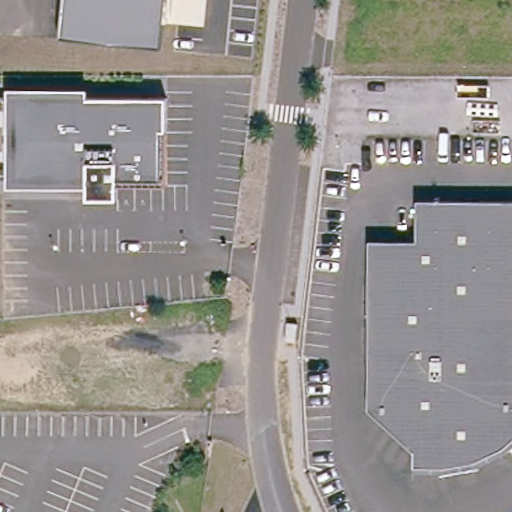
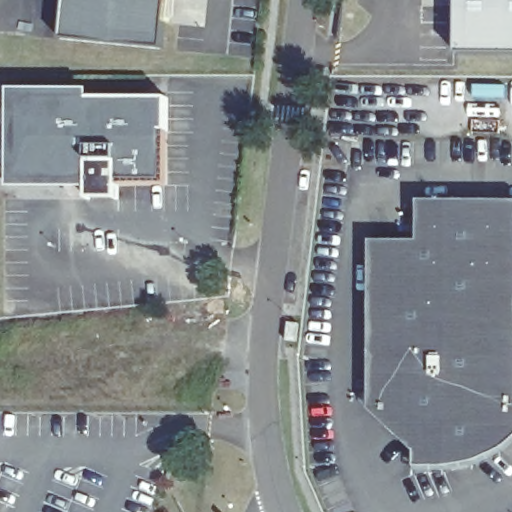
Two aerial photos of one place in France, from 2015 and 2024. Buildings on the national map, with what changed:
unchanged [(166,0),(162,48),(62,36),(65,0),(166,0)]
new [(460,0),(512,0),(512,51),(459,50),(460,0)]
unchanged [(87,197),(87,192),(87,177),(0,176),(0,96),(172,96),(172,129),(167,129),(166,178),(117,177),(117,192),(117,197),(87,197)]
unchanged [(441,462),(410,462),(410,447),(364,405),(367,235),(413,235),(413,195),(512,196),(512,432),(498,444),(471,457),(471,462),(440,468),(441,462)]

